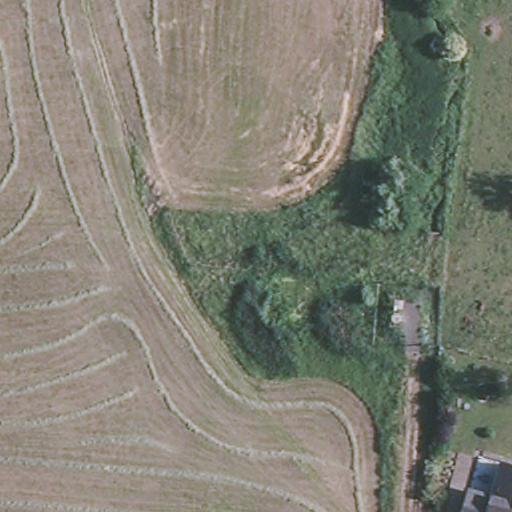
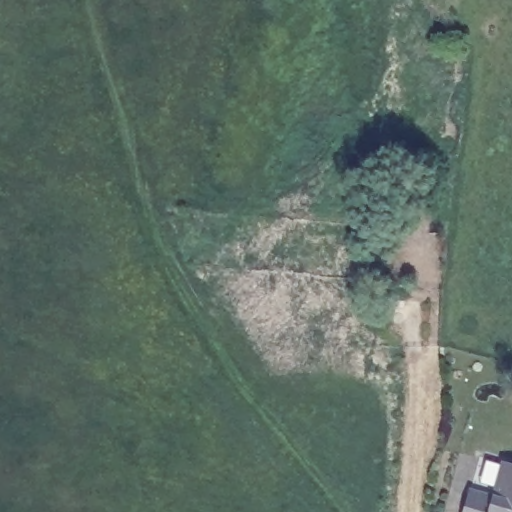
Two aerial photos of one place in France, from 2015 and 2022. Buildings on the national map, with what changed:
unchanged [(493,493),(503,460),(503,458),(512,461),(512,512),(463,512),(471,487),(493,493)]

